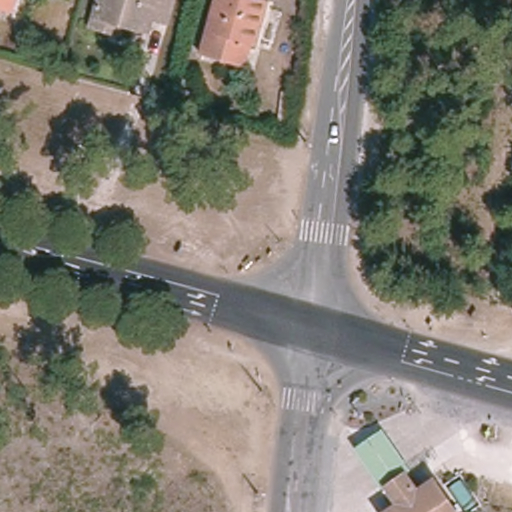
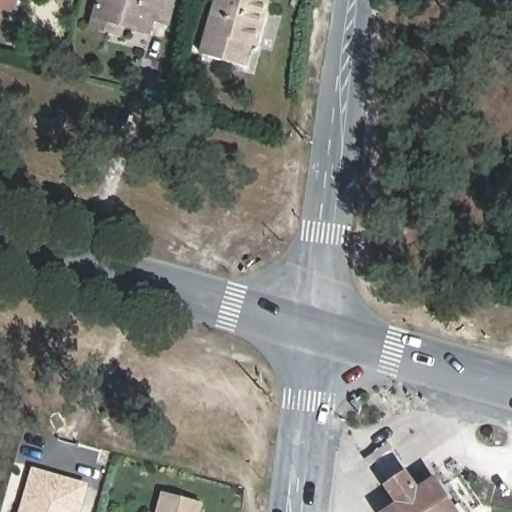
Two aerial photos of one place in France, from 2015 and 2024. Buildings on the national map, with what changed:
unchanged [(6,6),(0,4),(0,0),(7,0),(6,6)]
unchanged [(88,6),(90,0),(168,0),(162,23),(146,18),(143,31),(112,22),(86,14),(88,6)]
unchanged [(197,52),(212,0),(259,0),(267,2),(255,45),(247,43),(240,66),(197,52)]
unchanged [(384,487),(357,447),(381,429),(410,470),(406,472),(388,484),(384,487)]
new [(86,484),(78,512),(23,512),(35,470),(86,484)]
unchanged [(419,490),(436,479),(453,504),(457,501),(462,508),(458,511),(459,512),(386,512),(401,501),(388,484),(406,472),(419,490)]
new [(201,512),(158,512),(162,492),(203,502),(201,512)]

